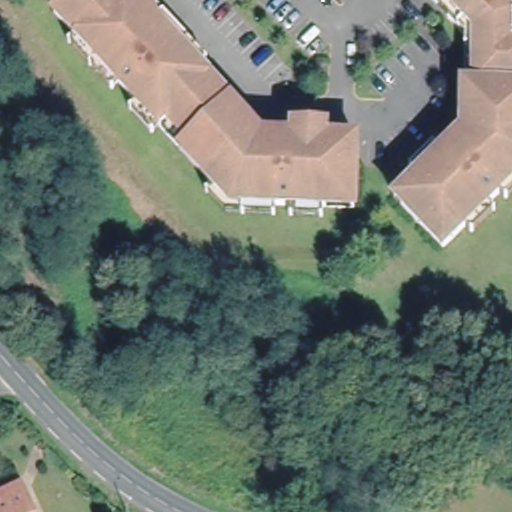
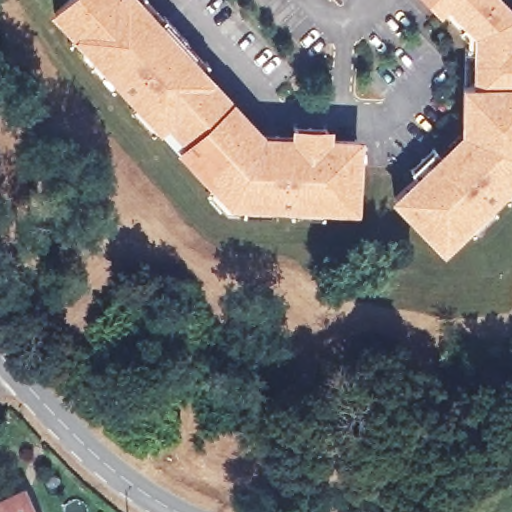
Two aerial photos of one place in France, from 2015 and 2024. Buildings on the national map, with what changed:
unchanged [(354,204),(230,199),(158,121),(151,128),(129,105),(136,98),(118,77),(111,84),(68,38),(75,31),(54,7),(62,0),(141,0),(193,57),(200,64),(231,98),(252,121),(262,132),(294,133),(294,121),(327,123),(327,134),(357,135),(354,204)]
unchanged [(155,0),(209,55),(200,64),(193,57),(141,0),(155,0)]
unchanged [(411,173),(435,150),(442,158),(464,136),(464,120),(464,90),(473,91),(474,51),(464,51),(464,37),(447,20),(455,13),(443,0),(498,0),(512,15),(512,184),(445,251),(403,210),(396,203),(418,181),(411,173)]
unchanged [(25,512),(0,512),(0,501),(18,494),(25,512)]

